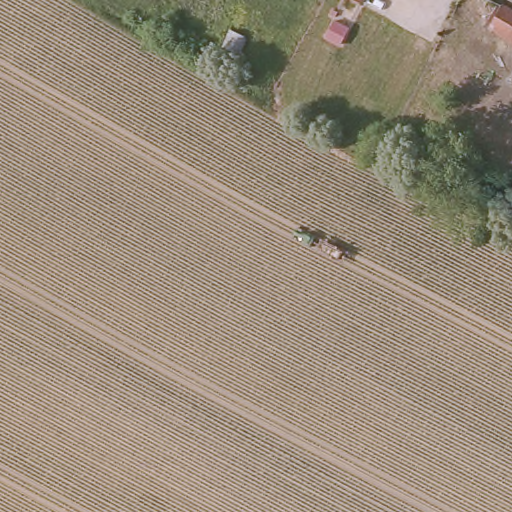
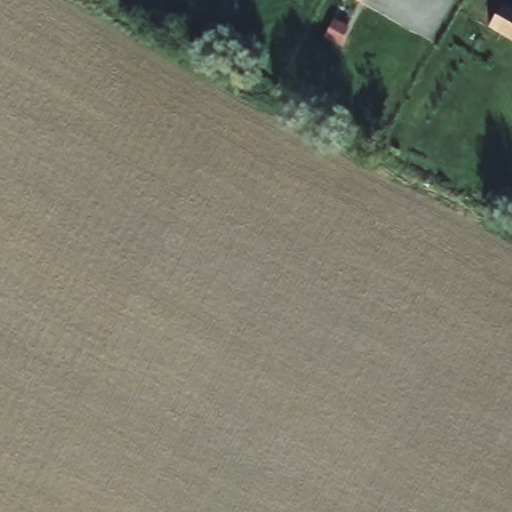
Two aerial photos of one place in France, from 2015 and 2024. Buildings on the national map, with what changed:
unchanged [(360,4),(351,0),(362,0),(360,4)]
unchanged [(506,0),(507,0),(512,3),(512,32),(493,21),(506,0)]

